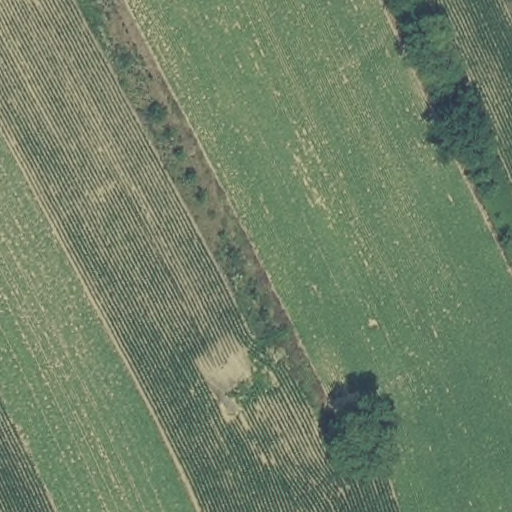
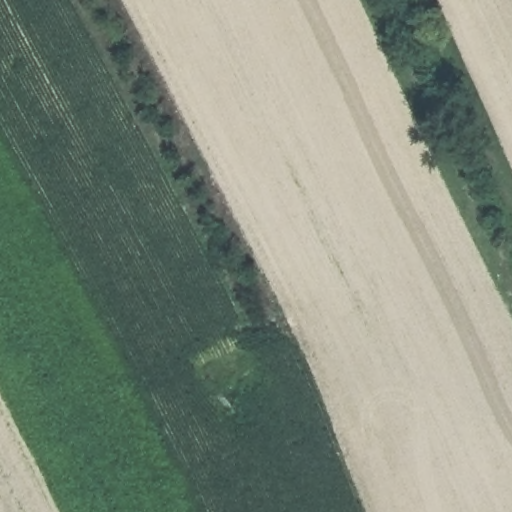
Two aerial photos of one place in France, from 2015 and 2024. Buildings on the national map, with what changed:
[]

